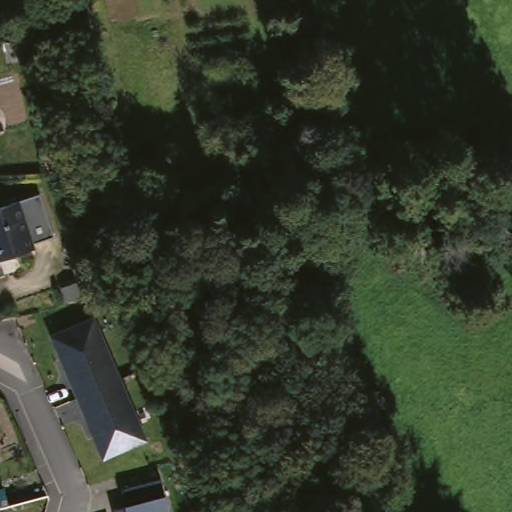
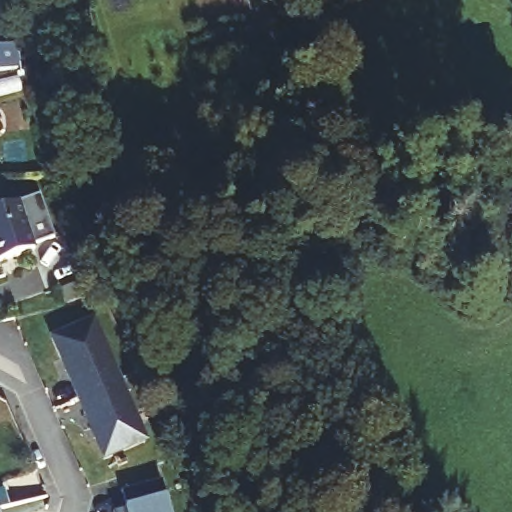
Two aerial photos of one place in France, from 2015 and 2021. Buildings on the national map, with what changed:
unchanged [(52,241),(31,249),(32,253),(0,264),(0,211),(38,199),(52,241)]
unchanged [(151,439),(105,463),(48,336),(96,315),(151,439)]
unchanged [(126,507),(121,492),(160,483),(165,498),(169,512),(114,512),(124,507),(126,507)]

